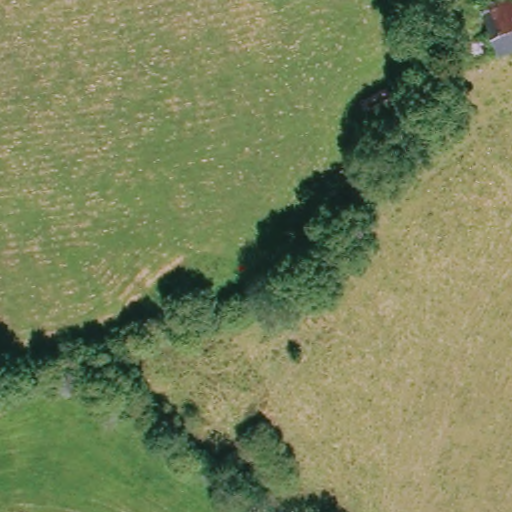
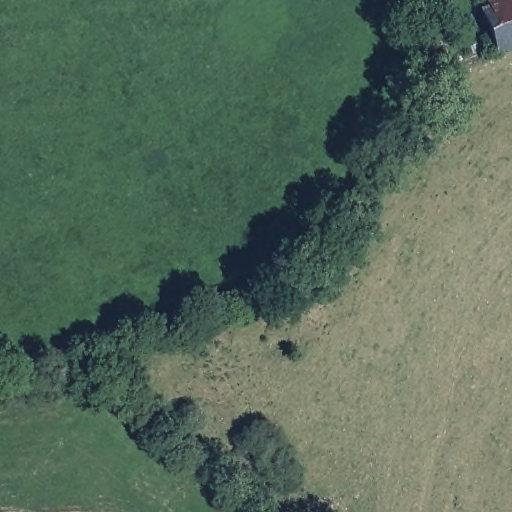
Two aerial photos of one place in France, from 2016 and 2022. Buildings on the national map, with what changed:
unchanged [(498,54),(481,11),(508,0),(512,0),(512,48),(498,54)]

